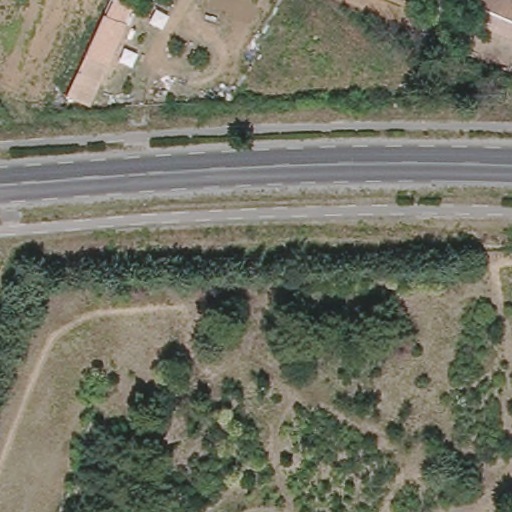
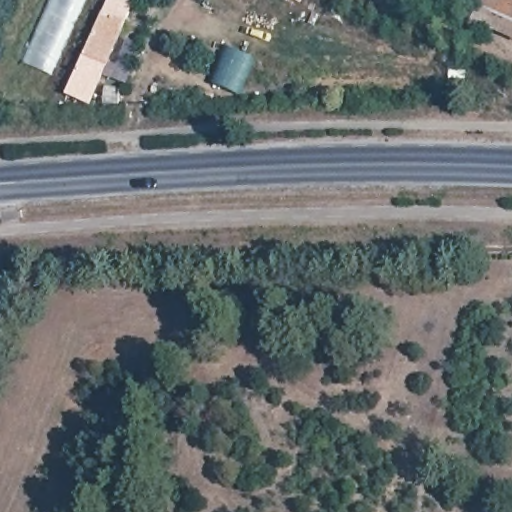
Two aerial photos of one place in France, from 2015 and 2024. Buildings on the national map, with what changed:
new [(52,77),(25,66),(54,0),(88,0),(52,77)]
unchanged [(95,103),(67,92),(104,0),(137,0),(95,103)]
unchanged [(430,2),(432,0),(459,0),(452,15),(430,2)]
unchanged [(473,22),(482,0),(512,0),(512,39),(473,22)]

